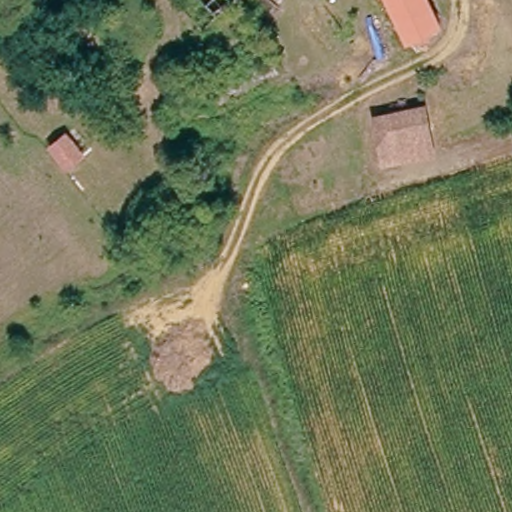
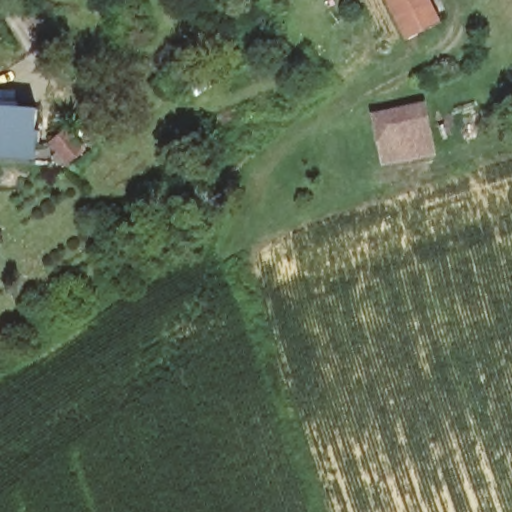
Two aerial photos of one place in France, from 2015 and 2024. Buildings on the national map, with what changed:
unchanged [(388,0),(425,0),(440,28),(411,42),(395,12),(388,0)]
new [(40,132),(40,144),(35,144),(35,161),(0,158),(0,107),(37,110),(36,132),(40,132)]
unchanged [(387,165),(380,118),(427,108),(435,157),(387,165)]
new [(86,150),(68,165),(49,143),(67,128),(86,150)]

